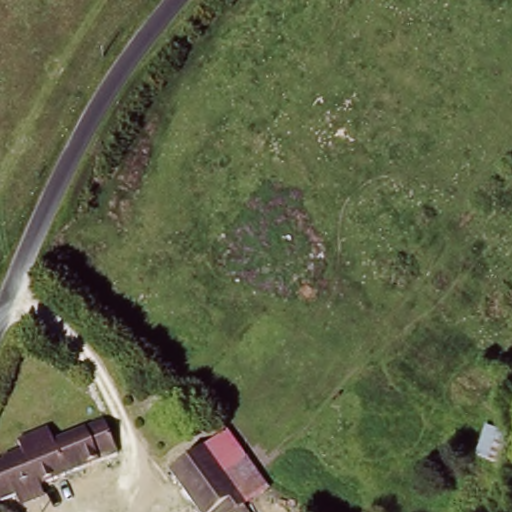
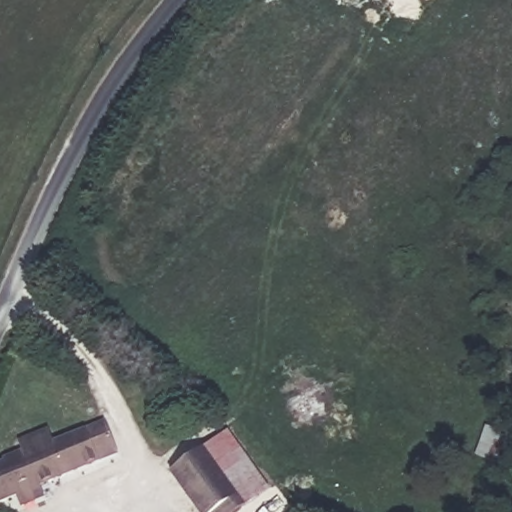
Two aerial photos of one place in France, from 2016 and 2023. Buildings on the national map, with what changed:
unchanged [(22,434),(52,421),(58,436),(110,416),(122,446),(30,485),(33,497),(12,507),(7,495),(0,497),(0,461),(27,451),(22,434)]
unchanged [(220,432),(239,458),(254,478),(237,492),(216,507),(210,512),(200,512),(169,469),(202,446),(220,432)]

